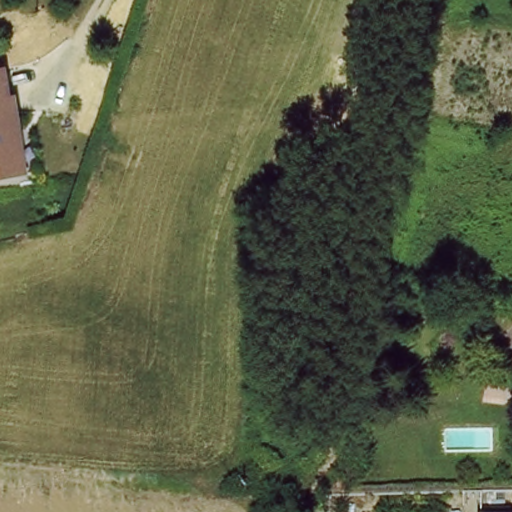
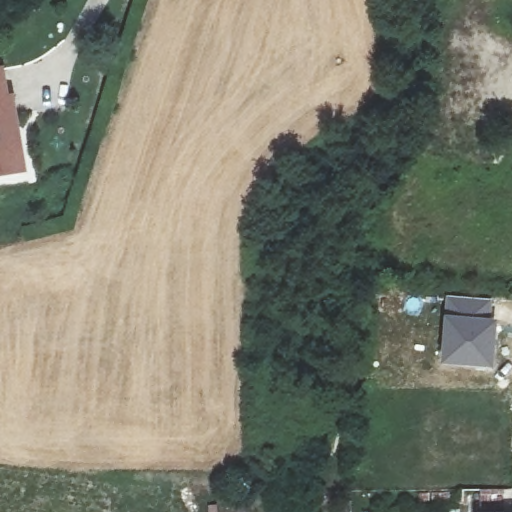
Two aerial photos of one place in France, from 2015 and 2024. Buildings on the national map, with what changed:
new [(2,69),(8,99),(0,100),(0,69),(2,69)]
unchanged [(12,98),(17,125),(12,126),(22,174),(0,178),(0,100),(12,98)]
new [(444,294),(494,298),(493,319),(496,320),(493,369),(439,365),(444,294)]

